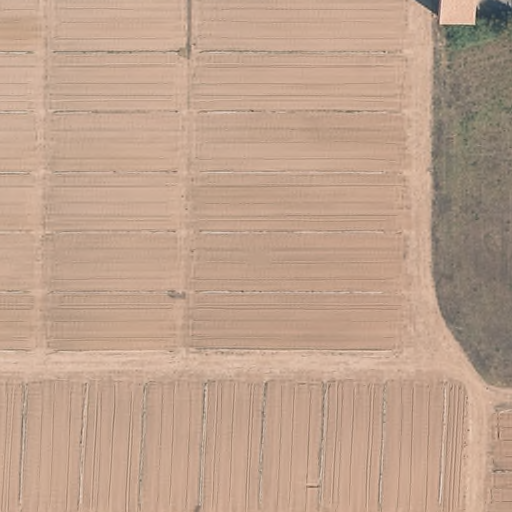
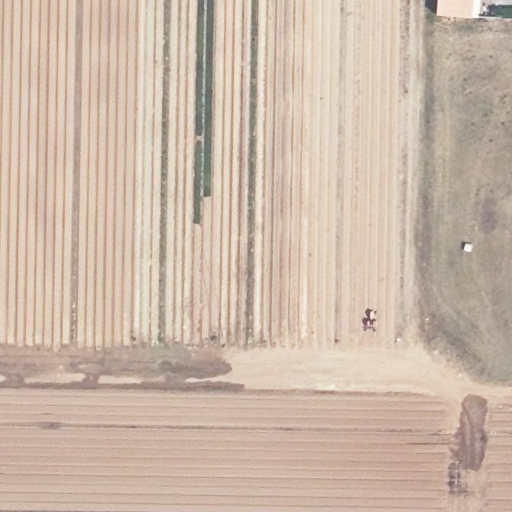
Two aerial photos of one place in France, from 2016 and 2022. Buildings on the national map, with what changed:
unchanged [(439,0),(479,0),(477,21),(437,22),(439,0)]

